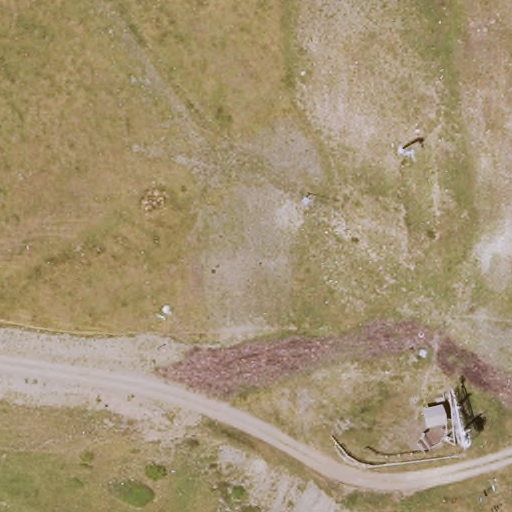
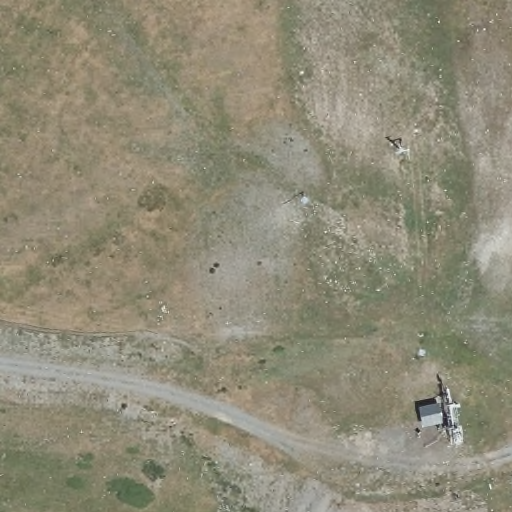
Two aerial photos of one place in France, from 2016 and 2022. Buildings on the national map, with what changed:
unchanged [(435,429),(426,432),(421,412),(441,406),(447,427),(435,429)]

